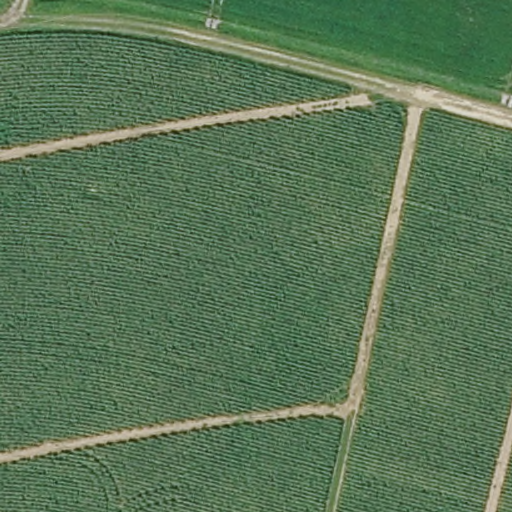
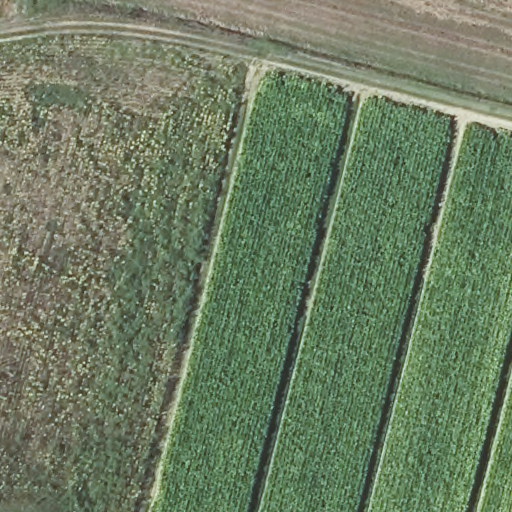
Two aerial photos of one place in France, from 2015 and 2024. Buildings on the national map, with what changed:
[]

